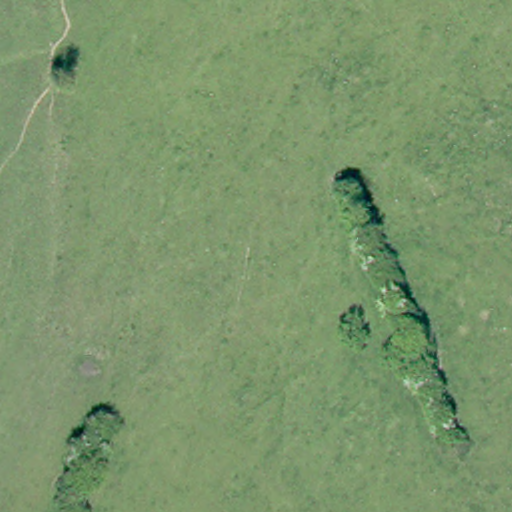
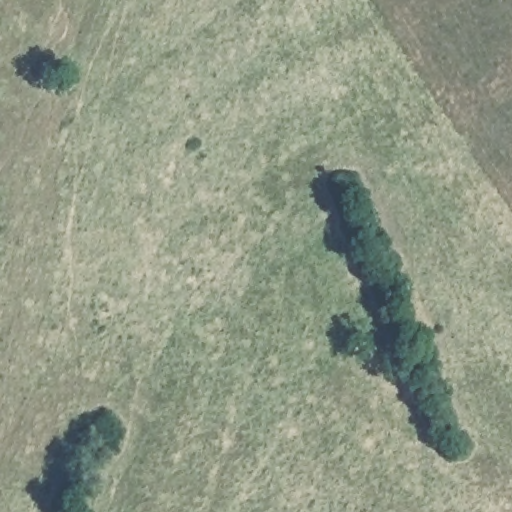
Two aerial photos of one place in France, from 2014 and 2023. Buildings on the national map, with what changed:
[]

